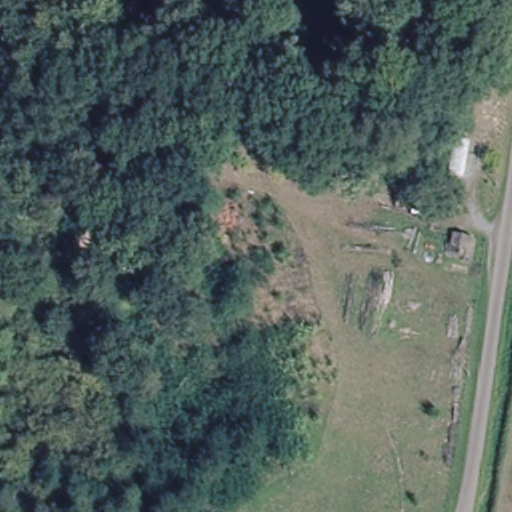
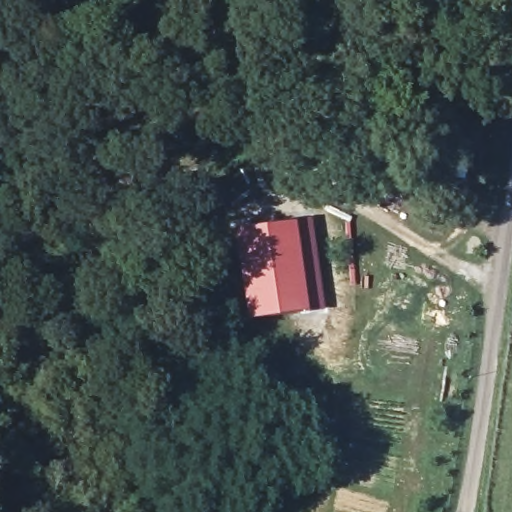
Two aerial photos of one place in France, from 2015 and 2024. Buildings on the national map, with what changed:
new [(311,217),(325,308),(246,319),(234,229),(311,217)]

